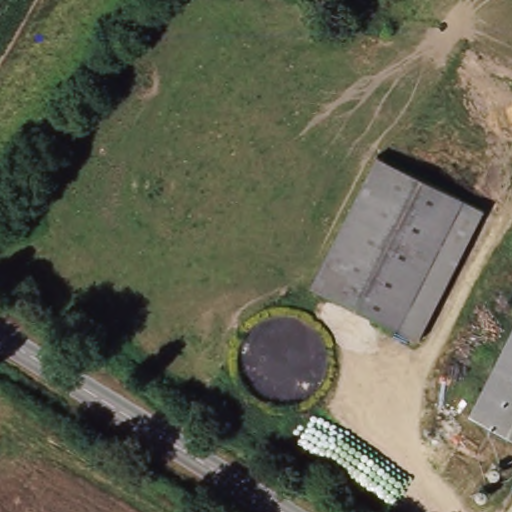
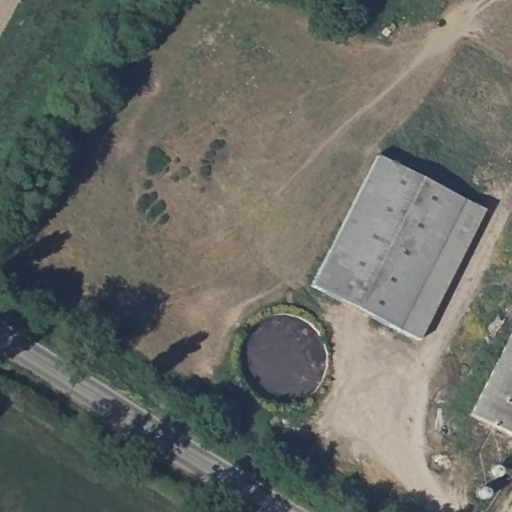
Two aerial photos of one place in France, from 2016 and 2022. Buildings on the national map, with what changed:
unchanged [(489,211),(423,341),(315,287),(382,156),(489,211)]
unchanged [(469,416),(512,332),(512,437),(469,416)]

